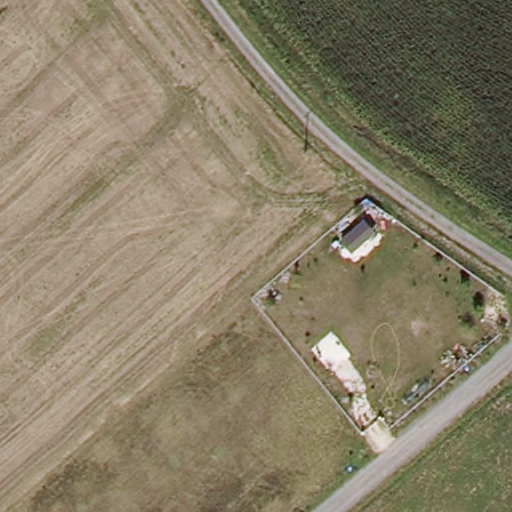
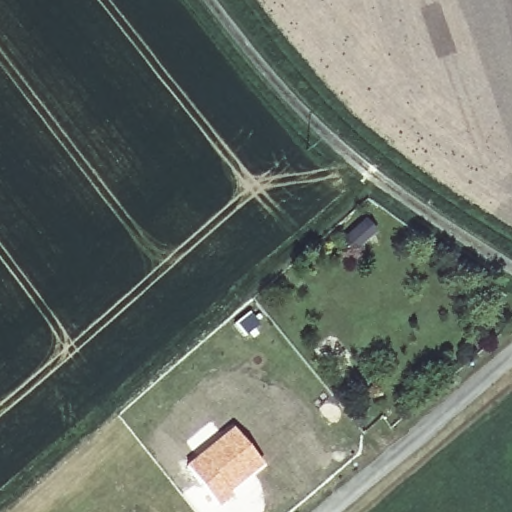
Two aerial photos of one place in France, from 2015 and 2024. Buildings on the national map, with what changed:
new [(231,427),(262,464),(218,505),(185,465),(231,427)]

